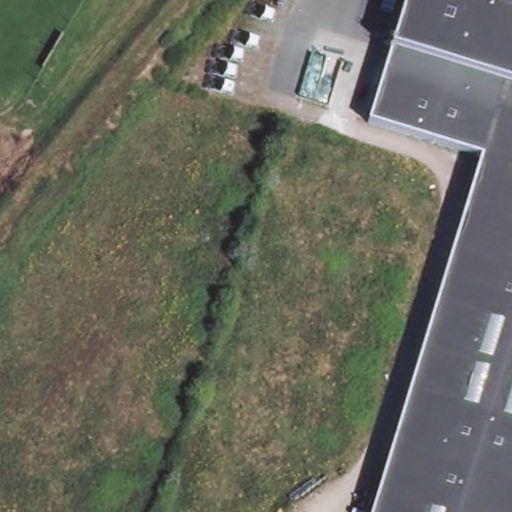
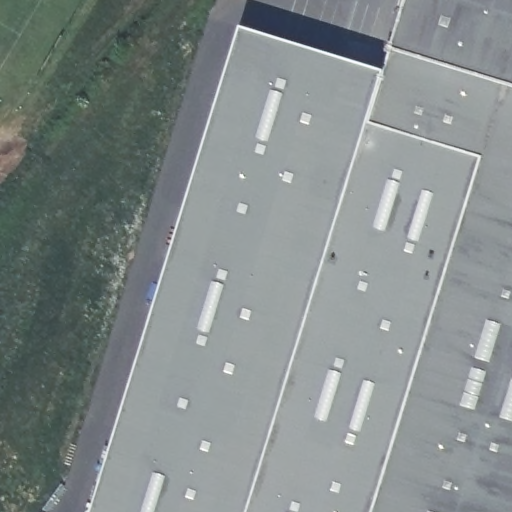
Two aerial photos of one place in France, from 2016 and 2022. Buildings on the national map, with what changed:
unchanged [(368,123),(392,46),(407,0),(512,0),(512,512),(371,512),(480,157),(368,123)]
new [(382,70),(384,71),(368,123),(480,157),(371,512),(91,512),(239,27),(382,70)]

